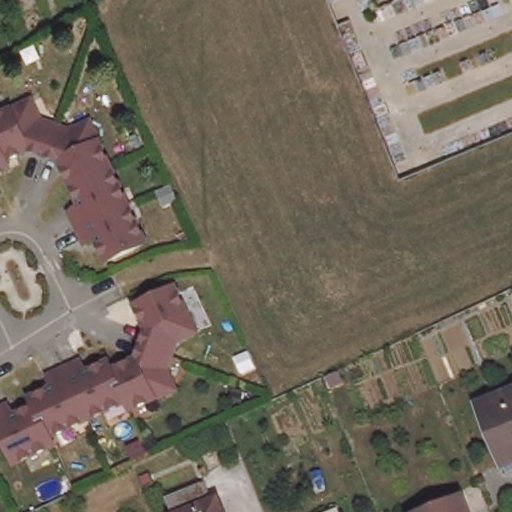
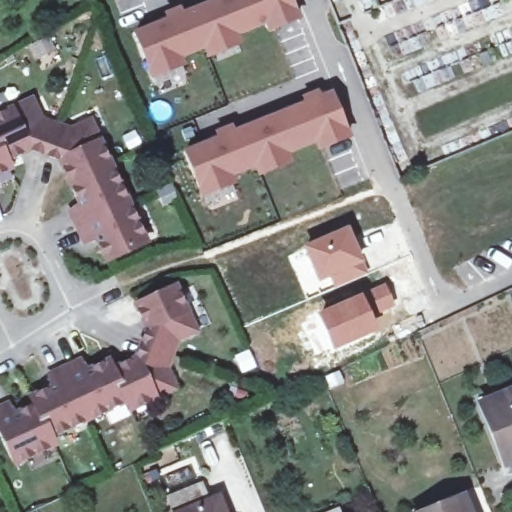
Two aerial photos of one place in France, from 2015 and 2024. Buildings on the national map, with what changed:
new [(164,12),(180,5),(182,10),(207,0),(293,0),(301,19),(267,32),(264,25),(238,35),(242,43),(207,58),(202,48),(182,57),(186,66),(151,80),(132,31),(165,17),(164,12)]
new [(215,137),(213,131),(232,124),(234,129),(303,101),(300,95),(317,89),(320,94),(331,89),(352,136),(319,150),(314,142),(290,153),(293,162),(257,175),(254,167),(233,176),(236,185),(202,196),(183,150),(215,137)]
unchanged [(41,121),(55,126),(69,131),(88,122),(109,165),(121,190),(115,194),(120,206),(128,222),(135,220),(145,244),(107,262),(95,238),(85,243),(77,226),(71,212),(82,207),(70,184),(58,160),(45,155),(30,150),(7,160),(10,169),(0,173),(0,117),(32,102),(41,121)]
new [(348,225),(368,274),(332,288),(329,280),(317,285),(301,246),(348,225)]
new [(332,350),(315,314),(361,292),(384,282),(395,308),(373,318),(378,330),(332,350)]
unchanged [(7,416),(30,405),(27,397),(48,386),(43,375),(60,368),(74,362),(79,373),(104,361),(107,369),(131,357),(137,344),(142,330),(130,305),(170,287),(190,331),(170,340),(165,354),(160,368),(168,388),(125,407),(123,404),(122,400),(96,412),(93,406),(80,412),(65,418),(68,425),(45,436),(48,445),(23,456),(20,450),(6,456),(0,443),(0,406),(2,405),(7,416)]
unchanged [(502,457),(478,405),(512,391),(512,454),(502,457)]
unchanged [(228,512),(178,512),(172,497),(207,483),(212,499),(221,495),(228,512)]
unchanged [(463,495),(470,512),(420,512),(463,495)]
unchanged [(342,512),(337,512),(342,510),(342,512)]

